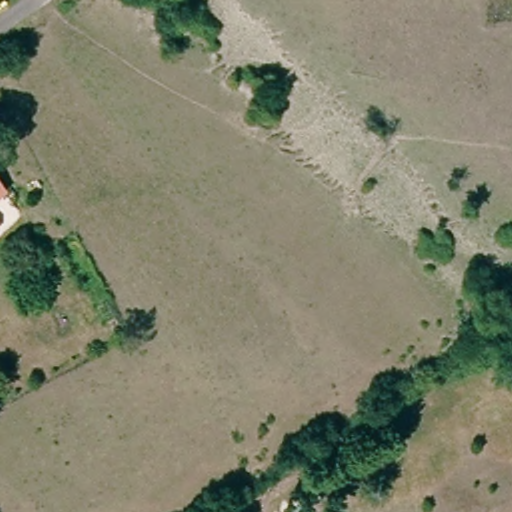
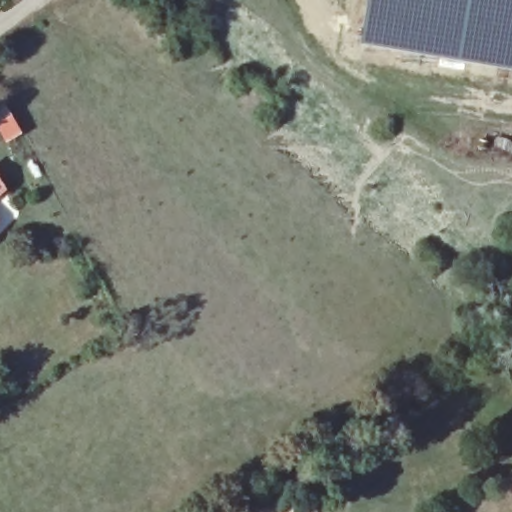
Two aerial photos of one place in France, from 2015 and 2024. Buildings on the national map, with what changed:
new [(512,0),(512,70),(360,45),(367,0),(512,0)]
unchanged [(0,190),(0,181),(3,187),(0,190)]

